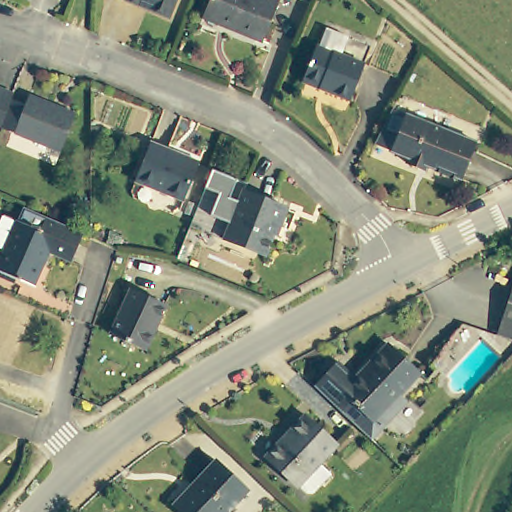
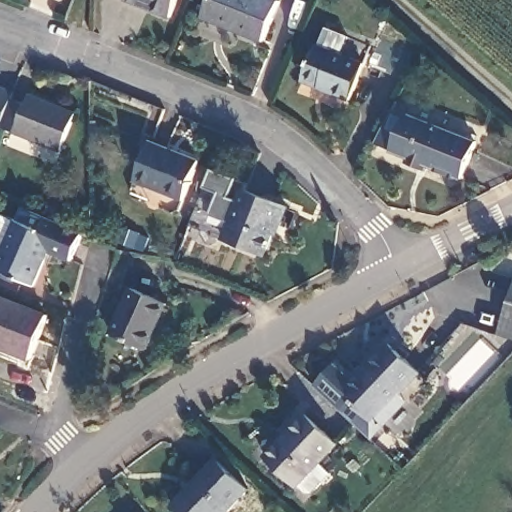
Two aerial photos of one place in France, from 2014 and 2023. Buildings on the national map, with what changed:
unchanged [(170,21),(125,3),(126,0),(178,0),(170,21)]
unchanged [(282,0),(266,39),(233,26),(234,19),(209,9),(212,0),(281,0),(282,0)]
unchanged [(354,36),(349,53),(368,62),(353,100),(306,80),(320,42),(326,45),(333,27),(354,36)]
unchanged [(4,84),(0,92),(0,83),(4,84)]
unchanged [(5,125),(0,139),(0,92),(4,84),(18,88),(14,98),(5,125)]
unchanged [(27,102),(31,89),(79,108),(61,147),(5,125),(14,98),(27,102)]
unchanged [(477,141),(463,178),(424,163),(422,167),(408,162),(410,156),(377,142),(394,106),(477,141)]
unchanged [(202,157),(185,195),(140,176),(155,137),(202,157)]
unchanged [(232,220),(212,211),(221,190),(207,184),(211,175),(215,165),(249,180),(246,187),(288,205),(281,224),(278,222),(266,252),(225,236),(232,220)]
unchanged [(50,215),(84,230),(72,261),(49,252),(35,286),(0,271),(2,265),(0,265),(0,215),(16,220),(24,204),(50,215)]
unchanged [(167,302),(146,349),(110,332),(131,286),(167,302)]
new [(29,360),(0,349),(0,295),(47,313),(29,360)]
unchanged [(512,297),(512,338),(501,335),(512,297)]
unchanged [(397,415),(386,428),(372,415),(327,377),(327,376),(350,350),(369,367),(400,331),(433,360),(412,382),(420,390),(397,415)]
unchanged [(339,442),(298,487),(263,456),(304,411),(339,442)]
unchanged [(229,512),(200,512),(181,495),(221,451),(255,481),(229,512)]

